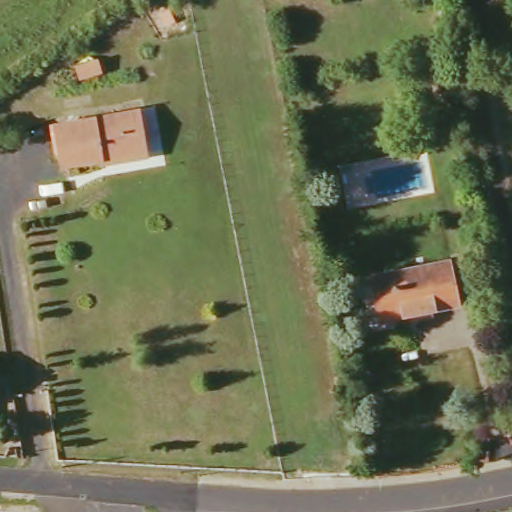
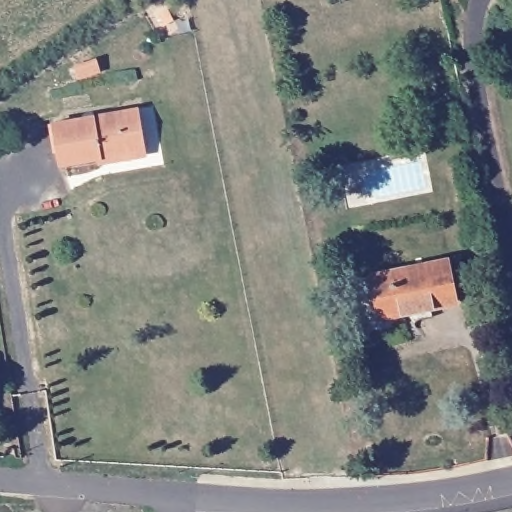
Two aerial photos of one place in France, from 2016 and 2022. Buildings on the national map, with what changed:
unchanged [(54,126),(137,109),(145,150),(117,155),(118,159),(100,163),(99,158),(61,165),(54,126)]
unchanged [(371,276),(446,260),(455,303),(380,318),(371,276)]

